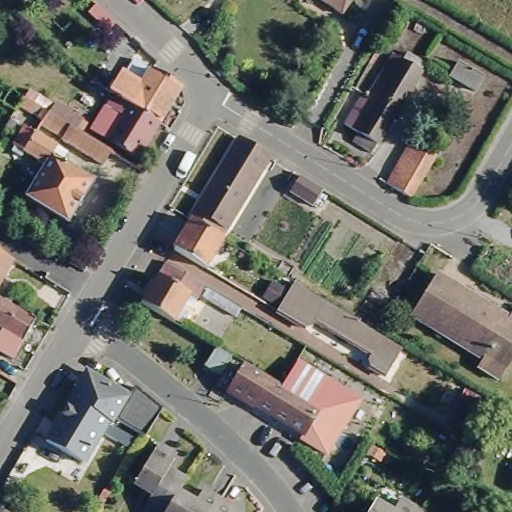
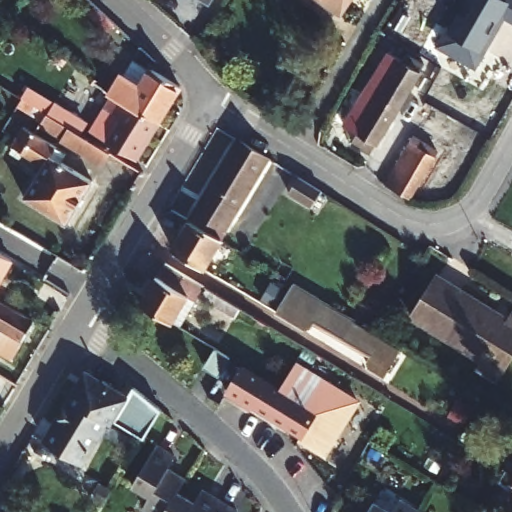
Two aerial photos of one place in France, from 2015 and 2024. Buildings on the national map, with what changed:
unchanged [(206,2),(203,0),(207,0),(206,2)]
unchanged [(343,12),(322,0),(349,0),(343,12)]
new [(506,17),(477,67),(439,45),(465,0),(512,0),(512,21),(506,17)]
unchanged [(351,136),(355,129),(343,121),(363,90),(375,98),(402,56),(422,69),(372,149),(351,136)]
unchanged [(106,92),(96,86),(103,74),(113,80),(120,69),(135,78),(142,65),(180,89),(159,124),(106,92)]
unchanged [(460,65),(485,80),(478,90),(477,92),(452,77),(454,75),(460,65)]
unchanged [(159,124),(136,160),(92,134),(107,107),(105,104),(107,102),(102,97),(106,92),(159,124)]
unchanged [(103,167),(62,142),(63,141),(42,127),(43,123),(19,108),(25,100),(112,154),(103,167)]
unchanged [(27,178),(32,171),(42,176),(45,170),(12,149),(25,128),(57,148),(55,151),(63,156),(60,162),(95,184),(68,226),(27,200),(37,184),(27,178)]
unchanged [(382,182),(408,139),(431,154),(405,196),(382,182)]
unchanged [(240,140),(270,157),(222,237),(192,220),(240,140)]
unchanged [(324,187),(315,203),(291,190),(300,174),(324,187)]
unchanged [(206,270),(174,251),(192,220),(222,237),(224,238),(206,270)]
unchanged [(0,280),(0,253),(12,260),(0,280)]
unchanged [(162,262),(202,286),(191,302),(194,305),(180,329),(142,307),(137,305),(162,262)]
unchanged [(480,369),(485,362),(412,320),(436,277),(509,320),(512,314),(512,363),(502,382),(480,369)]
unchanged [(358,324),(400,348),(387,370),(368,358),(370,355),(315,320),(308,328),(277,310),(295,280),(326,299),(360,320),(358,324)]
unchanged [(220,293),(247,310),(244,314),(240,321),(205,299),(210,288),(220,293)]
unchanged [(0,333),(0,332),(2,328),(0,327),(0,298),(34,318),(22,340),(20,339),(17,344),(15,348),(0,339),(0,333)]
unchanged [(215,373),(200,365),(203,360),(212,345),(222,351),(222,350),(227,352),(215,373)]
unchanged [(324,409),(285,386),(299,361),(361,399),(347,422),(324,409)]
unchanged [(232,378),(240,363),(283,388),(270,412),(258,404),(257,406),(231,390),(236,382),(232,378)]
unchanged [(111,418),(100,437),(95,434),(77,467),(42,447),(82,377),(122,400),(127,392),(156,411),(140,436),(111,418)]
unchanged [(285,386),(324,409),(347,422),(330,453),(302,437),(305,433),(270,412),(283,388),(285,386)]
unchanged [(150,495),(130,483),(152,444),(172,456),(165,467),(183,478),(175,492),(163,512),(146,512),(141,509),(150,495)]
unchanged [(190,502),(199,487),(217,498),(209,512),(163,512),(175,492),(190,502)]
unchanged [(235,509),(233,512),(209,512),(217,498),(235,509)]
unchanged [(389,512),(396,501),(415,511),(414,512),(389,512)]
unchanged [(387,512),(365,512),(370,503),(387,512)]
unchanged [(6,512),(0,512),(0,508),(6,512)]
unchanged [(414,512),(415,511),(417,512),(414,512)]

